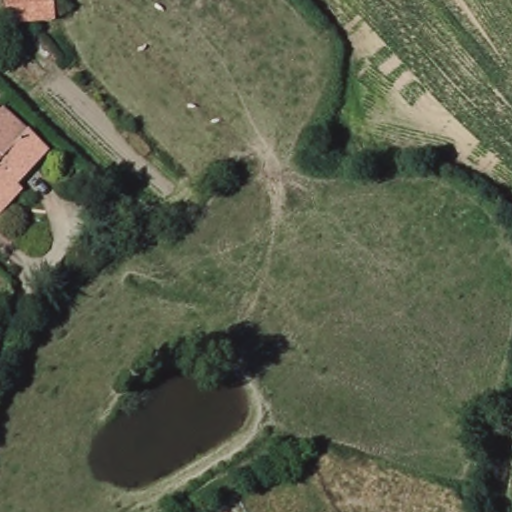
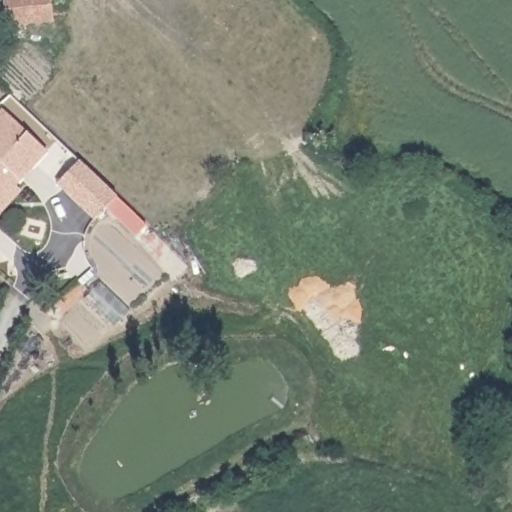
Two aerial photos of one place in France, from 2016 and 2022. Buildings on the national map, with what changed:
unchanged [(70,10),(69,14),(67,17),(62,19),(51,21),(53,28),(43,29),(14,31),(8,33),(4,33),(1,4),(1,0),(70,0),(71,1),(70,10)]
unchanged [(50,149),(0,204),(0,109),(3,105),(50,149)]
new [(116,197),(146,225),(134,237),(105,210),(94,221),(56,185),(79,161),(116,197)]

